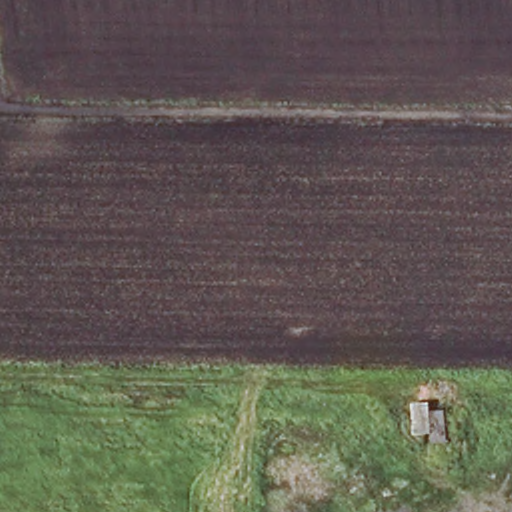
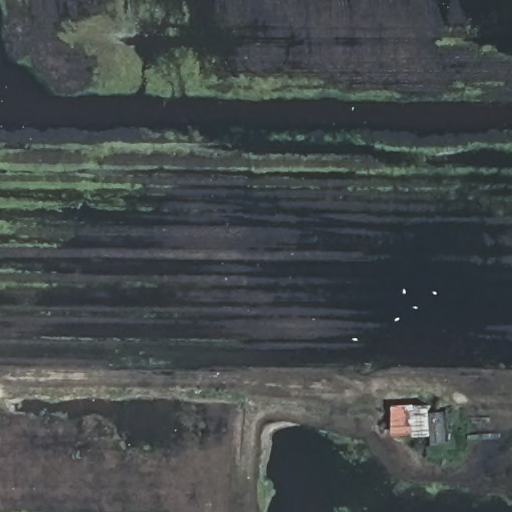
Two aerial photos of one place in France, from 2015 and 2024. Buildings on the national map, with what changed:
unchanged [(449,444),(432,445),(428,416),(426,417),(424,404),(428,403),(431,411),(443,411),(449,444)]

